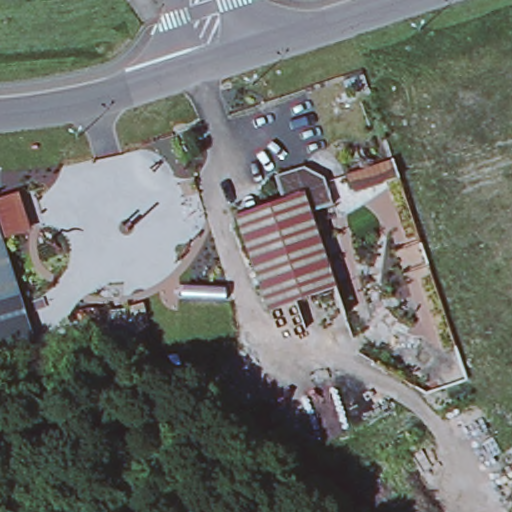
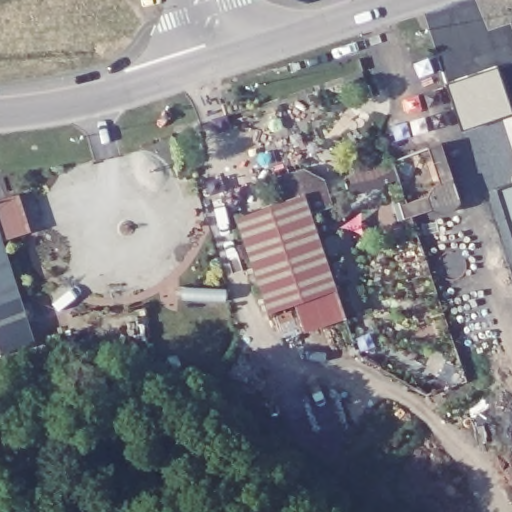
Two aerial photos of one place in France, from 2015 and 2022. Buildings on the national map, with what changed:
new [(497,67),(512,110),(512,117),(463,130),(447,84),(497,67)]
unchanged [(308,208),(320,239),(320,241),(320,242),(347,318),(305,332),(290,302),(267,307),(255,272),(255,271),(254,270),(234,212),(280,196),(273,173),(302,163),(322,174),(331,201),(308,208)]
new [(499,189),(512,186),(512,229),(499,189)]
unchanged [(0,306),(0,226),(23,298),(0,306)]

